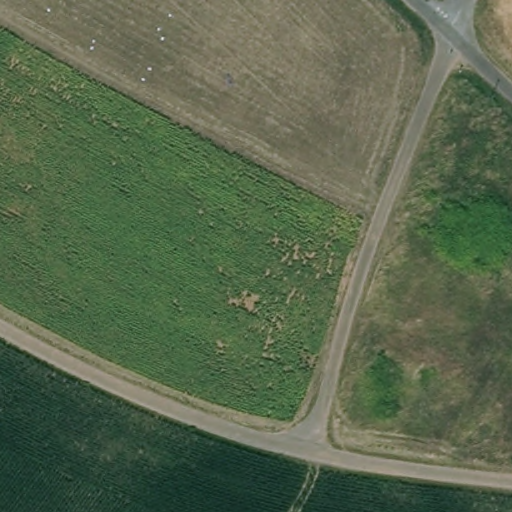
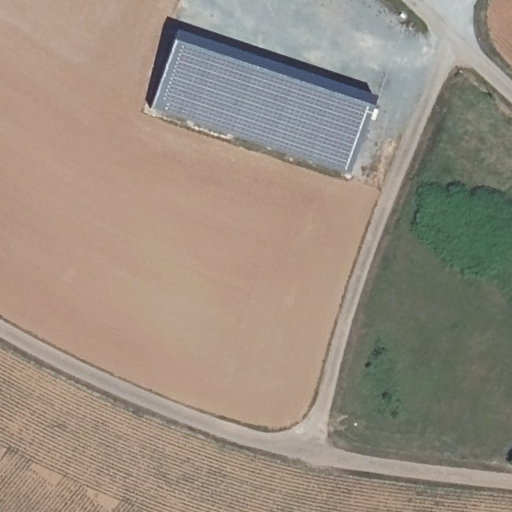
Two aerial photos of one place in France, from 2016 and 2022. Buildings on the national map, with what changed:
new [(177,35),(376,101),(351,177),(151,111),(177,35)]

